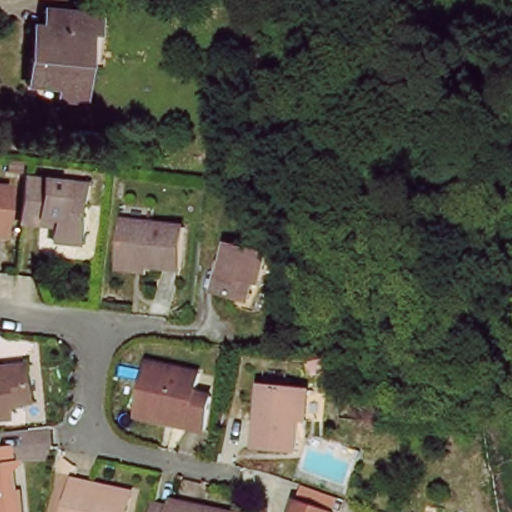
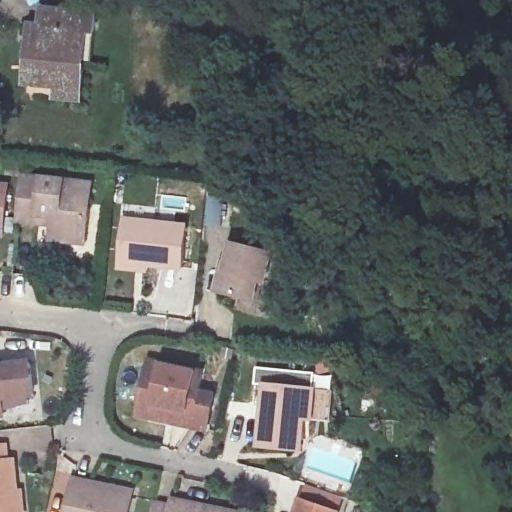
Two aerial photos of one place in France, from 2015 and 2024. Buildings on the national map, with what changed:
unchanged [(98,10),(97,28),(85,27),(83,89),(65,89),(66,72),(31,69),(33,48),(44,48),(45,7),(98,10)]
unchanged [(26,171),(96,178),(89,239),(55,235),(58,209),(44,206),(43,214),(23,212),(26,171)]
unchanged [(0,230),(0,182),(8,182),(3,231),(0,230)]
unchanged [(186,224),(181,265),(128,258),(132,217),(186,224)]
unchanged [(275,251),(269,277),(263,275),(256,295),(221,287),(226,267),(235,268),(241,244),(275,251)]
unchanged [(31,387),(0,387),(0,358),(30,356),(31,387)]
unchanged [(141,412),(151,361),(216,372),(208,423),(191,421),(159,416),(141,412)]
unchanged [(309,382),(306,444),(270,441),(272,380),(309,382)]
unchanged [(18,451),(18,512),(0,512),(0,439),(8,438),(8,450),(18,451)]
unchanged [(95,481),(93,488),(131,496),(129,512),(70,512),(76,479),(95,481)]
unchanged [(169,503),(171,497),(201,502),(201,508),(220,512),(158,512),(160,502),(169,503)]
unchanged [(300,512),(304,500),(341,512),(300,512)]

